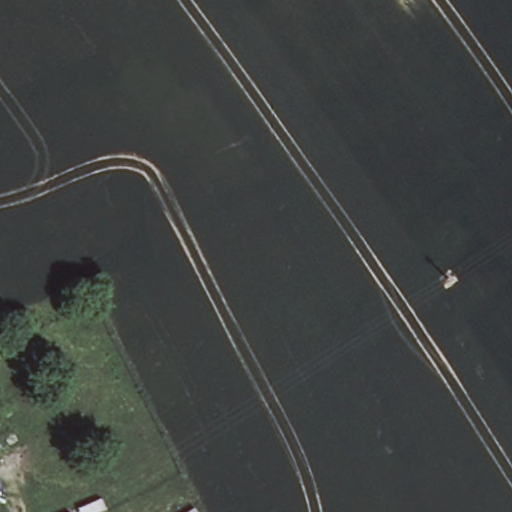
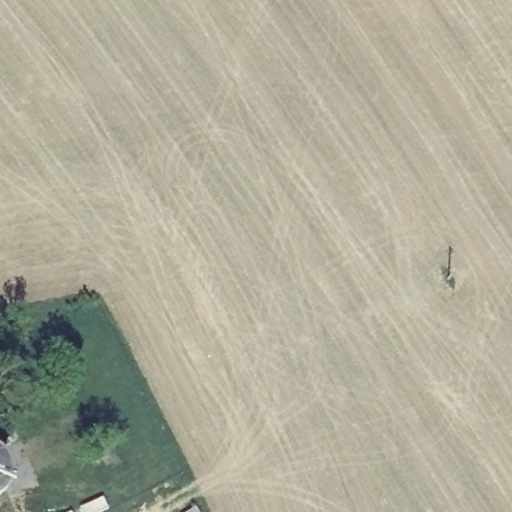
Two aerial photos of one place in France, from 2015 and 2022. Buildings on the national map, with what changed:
unchanged [(101,495),(110,512),(57,512),(101,495)]

